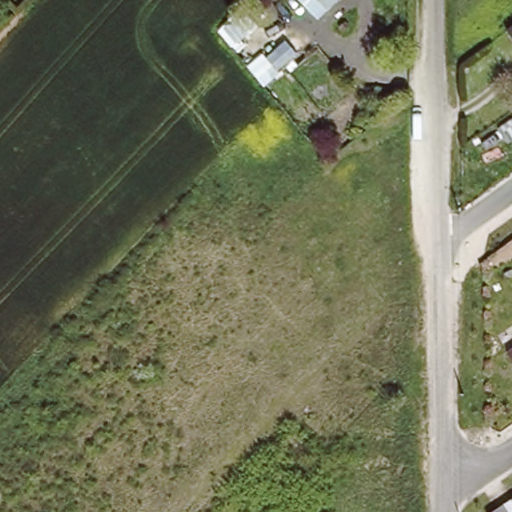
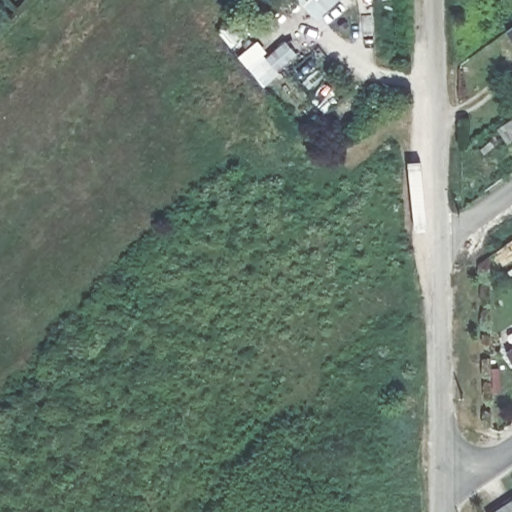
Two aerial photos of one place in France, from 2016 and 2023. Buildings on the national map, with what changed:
unchanged [(317,0),(336,0),(326,9),(317,0)]
unchanged [(507,30),(512,26),(512,38),(507,30)]
unchanged [(507,143),(497,129),(512,120),(512,139),(507,143)]
unchanged [(506,353),(512,348),(512,361),(506,353)]
unchanged [(512,501),(512,512),(494,512),(512,501)]

